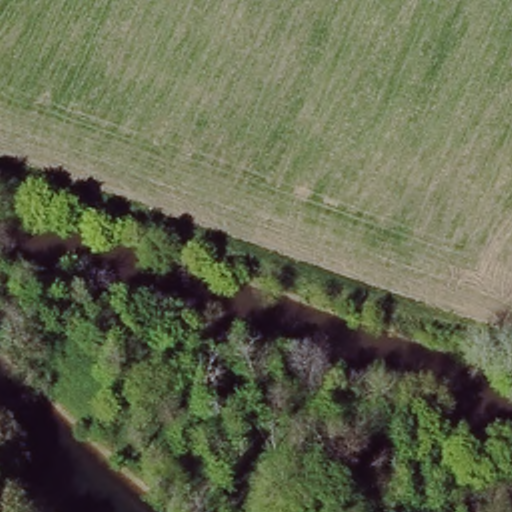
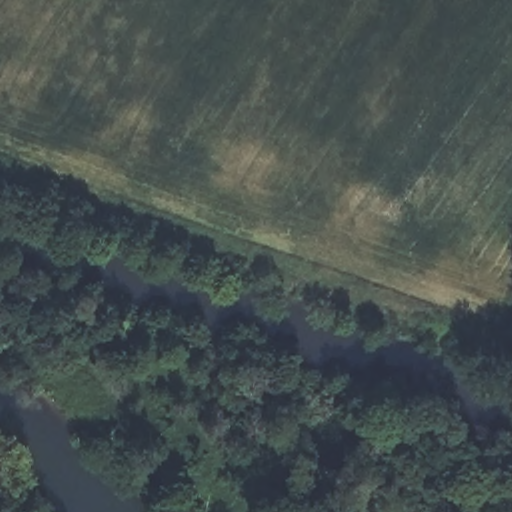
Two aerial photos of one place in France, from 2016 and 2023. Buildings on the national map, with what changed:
unchanged [(495,512),(478,512),(480,508),(495,512)]

